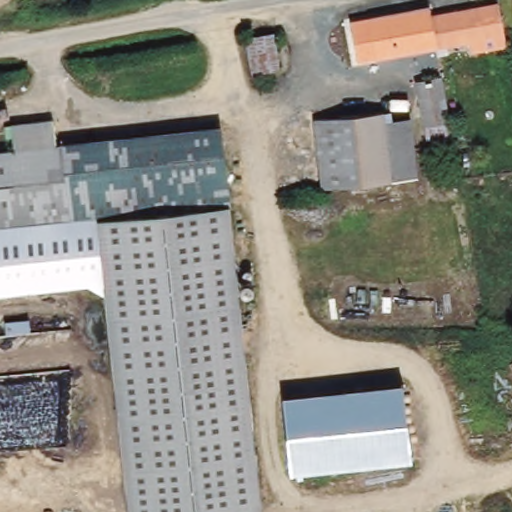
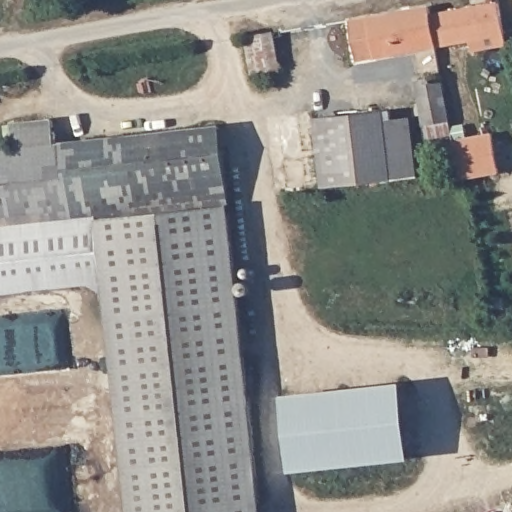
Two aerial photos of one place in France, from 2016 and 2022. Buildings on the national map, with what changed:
unchanged [(504,0),(512,41),(512,44),(480,49),(477,38),(443,44),(436,12),(504,0)]
unchanged [(434,3),(436,12),(443,44),(366,58),(358,16),(434,3)]
unchanged [(276,34),(282,69),(255,74),(249,39),(276,34)]
unchanged [(437,76),(450,135),(426,139),(415,80),(437,76)]
unchanged [(392,110),(393,118),(412,116),(419,180),(327,190),(317,117),(392,110)]
unchanged [(0,153),(22,151),(21,142),(40,140),(41,149),(227,127),(235,203),(239,245),(262,512),(132,512),(125,419),(112,284),(0,296),(0,153)]
new [(490,133),(497,172),(457,179),(450,140),(490,133)]
unchanged [(402,391),(410,466),(292,478),(284,404),(402,391)]

